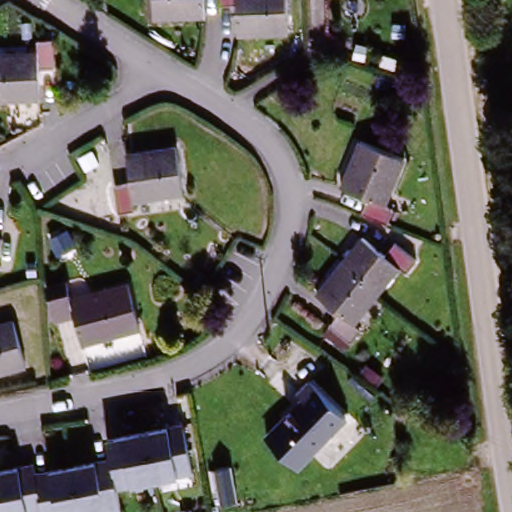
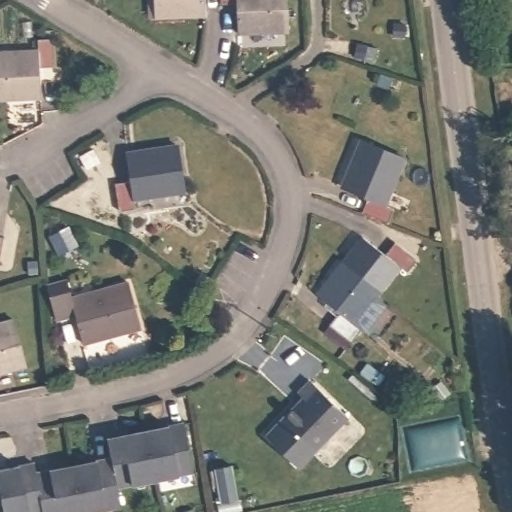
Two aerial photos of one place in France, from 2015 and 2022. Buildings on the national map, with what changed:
unchanged [(205,14),(150,17),(149,0),(204,0),(205,14)]
unchanged [(218,0),(287,0),(289,34),(234,35),(232,6),(219,6),(218,0)]
unchanged [(35,46),(36,34),(54,34),(55,64),(39,66),(39,95),(0,97),(0,48),(35,46)]
unchanged [(360,212),(363,200),(339,188),(359,140),(404,158),(385,206),(393,211),(388,228),(357,216),(360,212)]
unchanged [(114,181),(124,179),(121,153),(176,144),(182,193),(152,197),(129,200),(130,212),(112,212),(109,183),(114,181)]
unchanged [(340,265),(363,232),(389,253),(398,240),(420,256),(406,274),(396,268),(377,293),(340,265)]
unchanged [(0,266),(0,233),(7,234),(2,266),(0,266)]
unchanged [(354,321),(362,326),(353,339),(334,325),(340,316),(316,297),(340,265),(377,293),(354,321)]
unchanged [(134,322),(80,333),(73,304),(61,306),(55,278),(68,276),(71,290),(127,280),(134,322)]
unchanged [(27,367),(0,373),(0,329),(18,326),(27,367)]
unchanged [(346,425),(315,453),(280,418),(311,387),(346,425)]
unchanged [(149,482),(140,428),(179,422),(188,474),(152,481),(149,482)]
unchanged [(140,428),(149,482),(111,489),(109,490),(102,451),(99,437),(102,436),(140,428)]
unchanged [(102,451),(109,490),(111,506),(78,511),(67,458),(102,451)]
unchanged [(0,512),(0,463),(28,458),(30,465),(38,511),(34,512),(0,512)]
unchanged [(30,465),(67,458),(78,511),(75,512),(38,512),(38,511),(30,465)]

